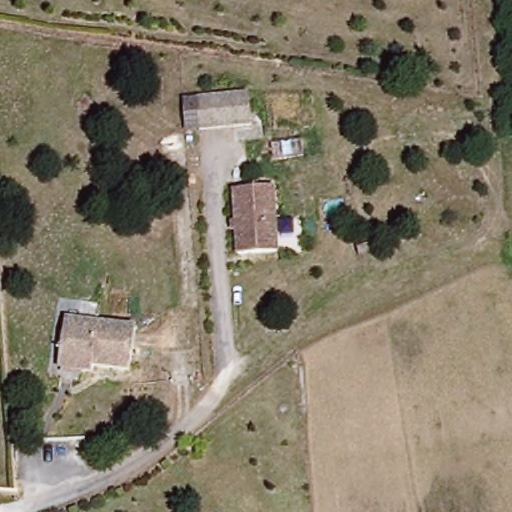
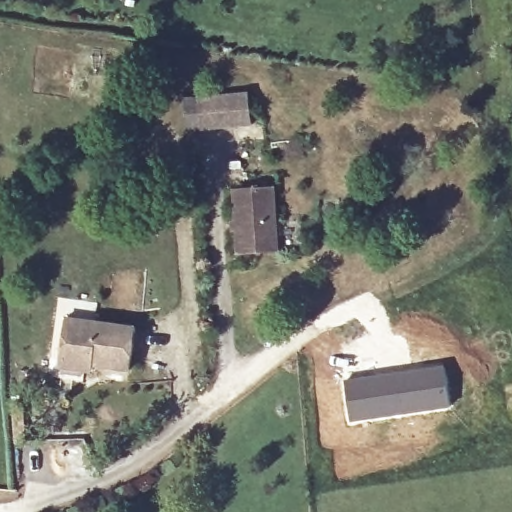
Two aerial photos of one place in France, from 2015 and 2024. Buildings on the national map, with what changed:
unchanged [(199,128),(196,97),(249,93),(251,124),(199,128)]
unchanged [(273,186),(278,250),(239,254),(233,190),(273,186)]
unchanged [(132,330),(126,372),(89,367),(87,372),(56,369),(63,322),(132,330)]
new [(445,364),(451,407),(350,421),(345,378),(445,364)]

